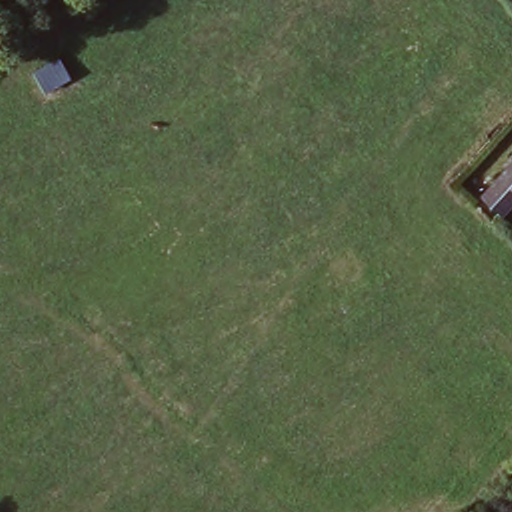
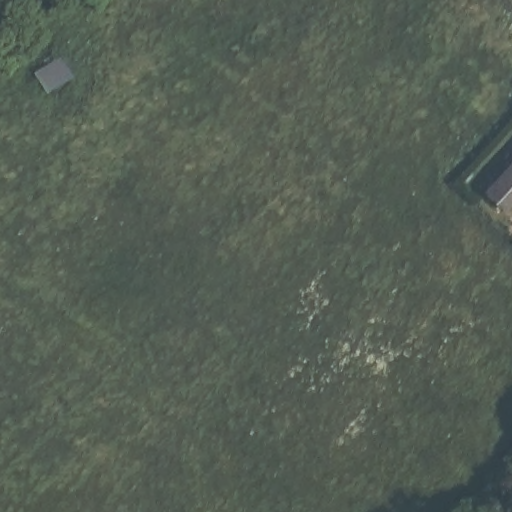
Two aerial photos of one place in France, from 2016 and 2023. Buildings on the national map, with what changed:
unchanged [(46,93),(34,73),(60,58),(73,77),(46,93)]
unchanged [(482,193),(503,170),(497,165),(503,158),(508,163),(512,159),(512,202),(503,212),(482,193)]

